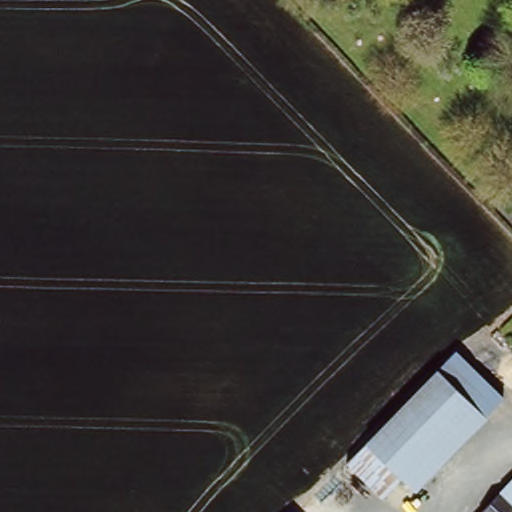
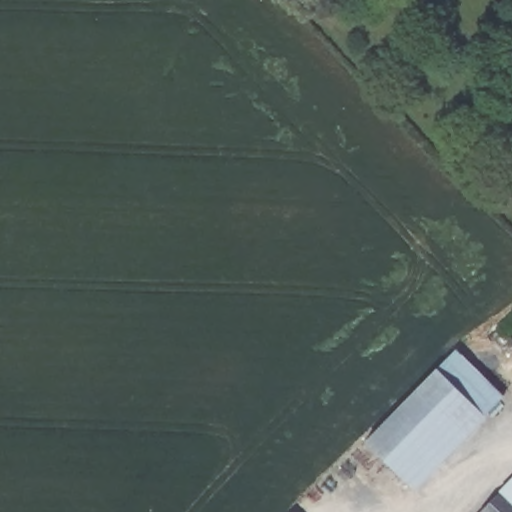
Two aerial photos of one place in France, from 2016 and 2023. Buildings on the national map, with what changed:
unchanged [(505,398),(487,417),(439,370),(457,351),(505,398)]
unchanged [(487,417),(489,419),(417,492),(403,478),(367,444),(439,370),(487,417)]
unchanged [(495,493),(512,476),(512,508),(495,493)]
unchanged [(495,493),(512,508),(512,512),(477,512),(495,493)]

